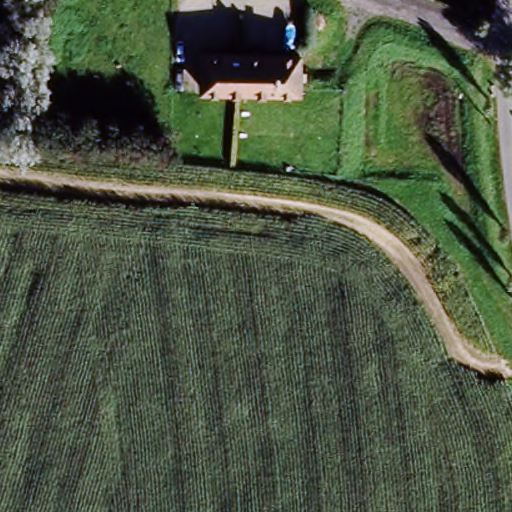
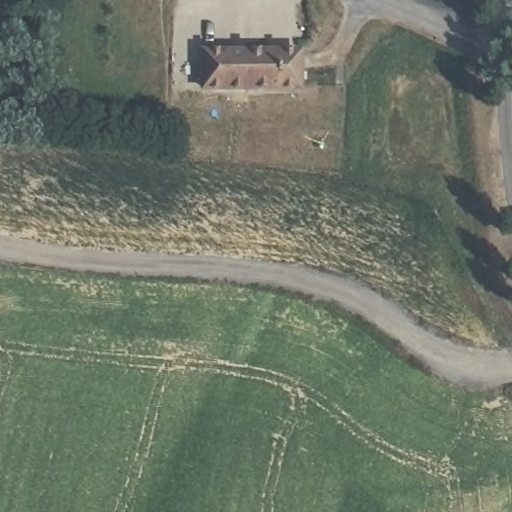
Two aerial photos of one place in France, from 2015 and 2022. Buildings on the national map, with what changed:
unchanged [(305,89),(210,94),(208,51),(302,47),(305,89)]

